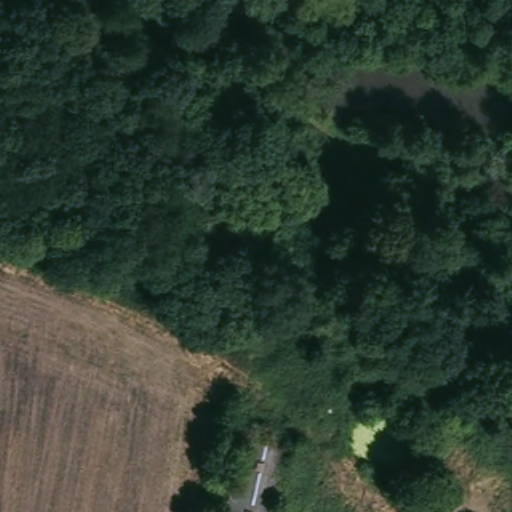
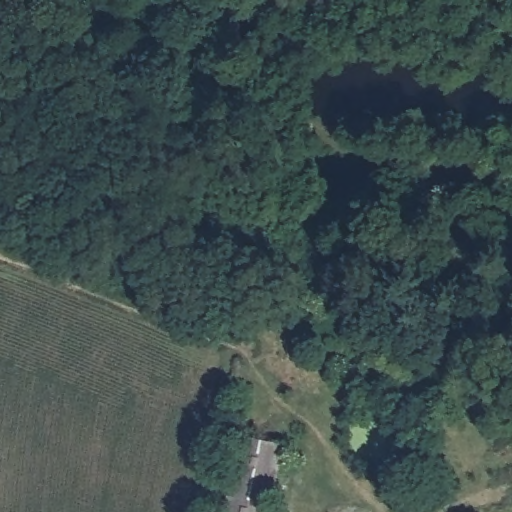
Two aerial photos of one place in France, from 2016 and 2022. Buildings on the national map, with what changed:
unchanged [(274,512),(224,512),(237,435),(285,442),(274,512)]

